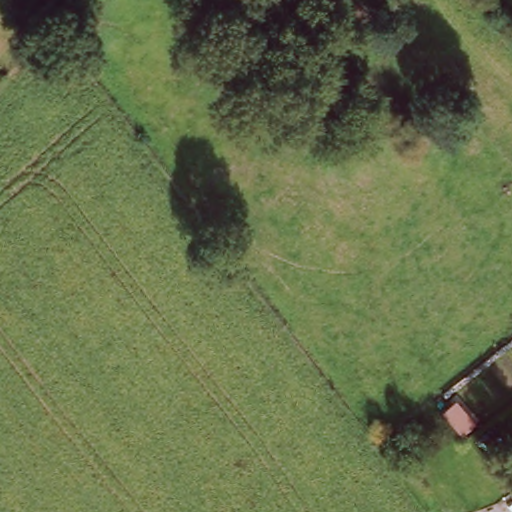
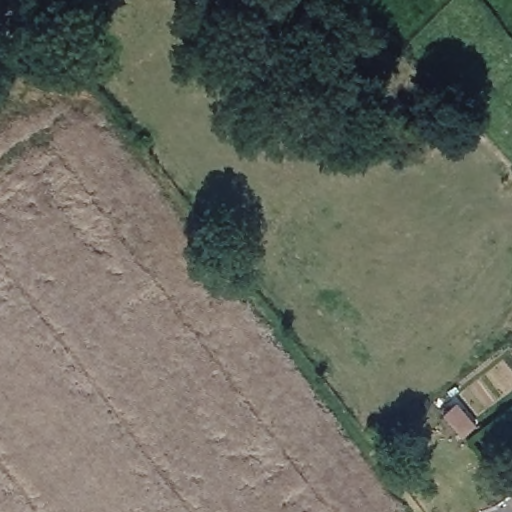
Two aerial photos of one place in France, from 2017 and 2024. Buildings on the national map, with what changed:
unchanged [(444,407),(457,397),(477,421),(463,431),(444,407)]

